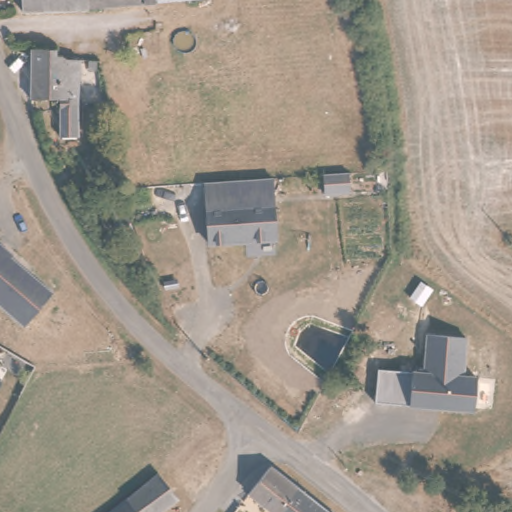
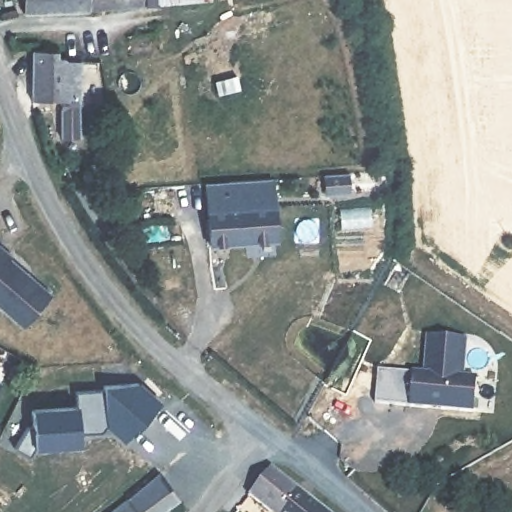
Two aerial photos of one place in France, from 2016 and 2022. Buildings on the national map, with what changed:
unchanged [(39,15),(26,16),(25,0),(75,0),(75,12),(39,15)]
unchanged [(75,12),(75,0),(159,0),(159,5),(75,12)]
unchanged [(159,5),(159,0),(209,0),(209,1),(159,5)]
demolished [(175,32),(176,46),(160,47),(159,34),(175,32)]
unchanged [(71,95),(72,137),(57,138),(56,125),(31,125),(30,72),(30,57),(43,56),(54,56),(78,55),(83,55),(85,82),(77,82),(66,82),(66,95),(71,95)]
unchanged [(348,173),(350,192),(326,195),(324,175),(348,173)]
unchanged [(278,236),(211,244),(207,206),(205,182),(229,180),(272,175),(278,236)]
unchanged [(0,300),(0,246),(3,243),(18,256),(15,260),(53,291),(27,322),(0,300)]
unchanged [(412,370),(422,371),(425,336),(467,340),(464,376),(480,377),(477,415),(408,408),(412,370)]
unchanged [(375,401),(377,367),(412,370),(408,408),(375,401)]
new [(75,391),(103,390),(103,385),(139,382),(161,401),(138,430),(134,426),(121,442),(104,427),(96,432),(79,433),(80,446),(33,448),(28,456),(14,447),(32,421),(31,407),(75,404),(75,391)]
unchanged [(251,483),(269,463),(324,512),(270,512),(253,498),(245,505),(239,502),(251,484),(251,483)]
unchanged [(159,468),(179,489),(182,505),(173,512),(152,512),(135,488),(159,468)]
unchanged [(135,488),(152,512),(106,512),(135,488)]

